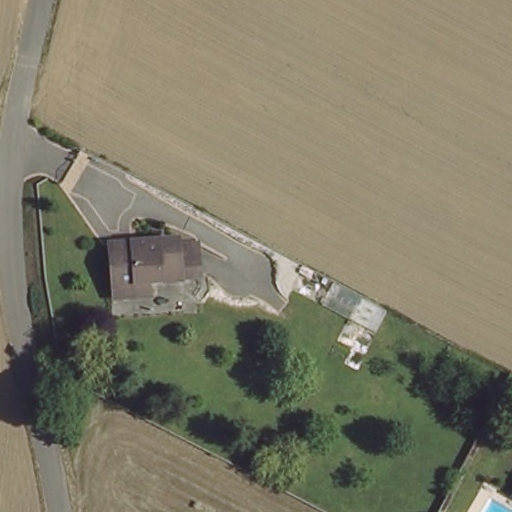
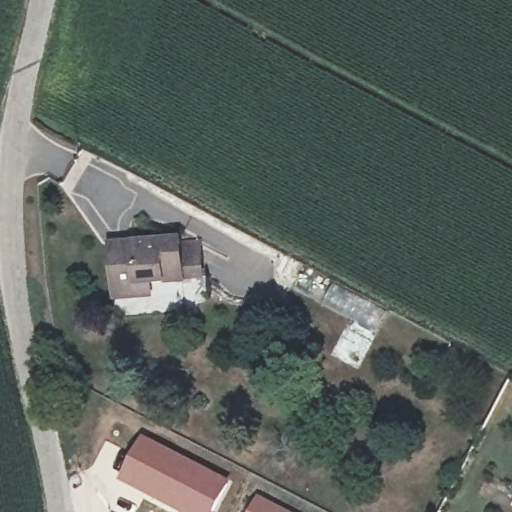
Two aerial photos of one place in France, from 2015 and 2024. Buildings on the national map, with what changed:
unchanged [(137,309),(115,311),(112,264),(137,261),(136,257),(179,251),(182,257),(202,255),(203,285),(183,286),(183,291),(150,295),(150,308),(137,309)]
new [(228,479),(212,512),(180,512),(120,481),(143,435),(228,479)]
new [(292,512),(245,512),(255,493),(292,512)]

